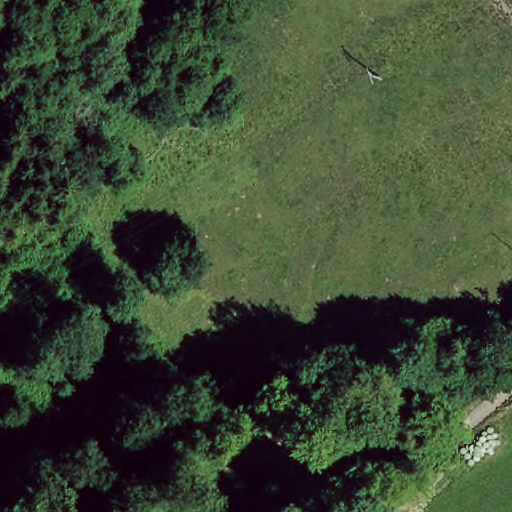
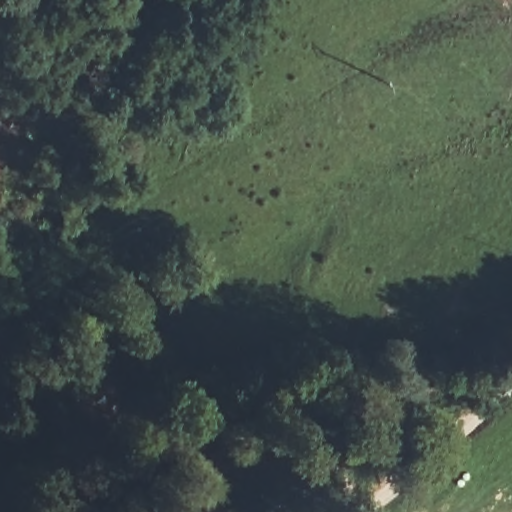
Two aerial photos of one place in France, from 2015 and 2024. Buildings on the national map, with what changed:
[]

